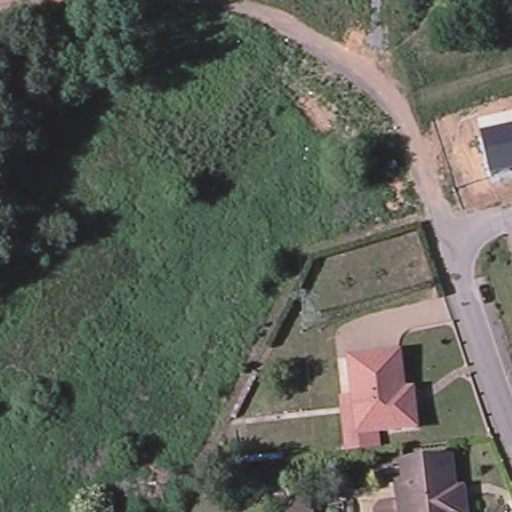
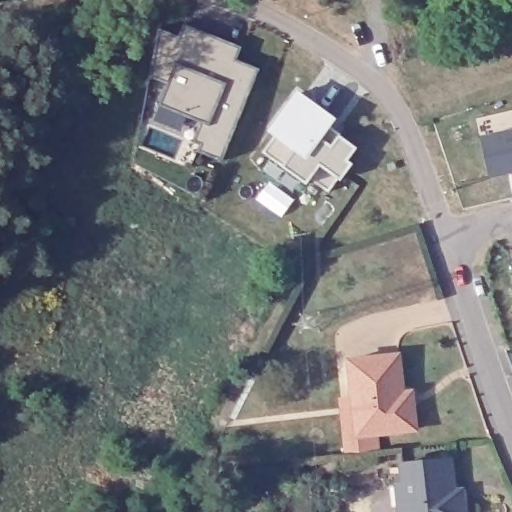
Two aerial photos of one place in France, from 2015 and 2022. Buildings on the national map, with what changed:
new [(158,26),(178,34),(183,21),(222,37),(217,50),(258,66),(221,159),(196,149),(199,142),(192,140),(200,120),(158,103),(159,101),(167,81),(148,74),(158,26)]
new [(276,131),(271,127),(297,92),(331,117),(310,145),(323,155),(325,152),(343,166),(327,189),(310,175),(305,180),(263,150),(276,131)]
new [(145,95),(159,101),(158,103),(200,120),(192,140),(140,118),(145,95)]
unchanged [(490,180),(481,135),(512,129),(512,175),(490,180)]
unchanged [(412,403),(415,427),(357,433),(348,358),(397,353),(403,404),(412,403)]
unchanged [(401,502),(406,502),(402,462),(449,456),(453,497),(462,496),(464,512),(402,512),(401,502)]

